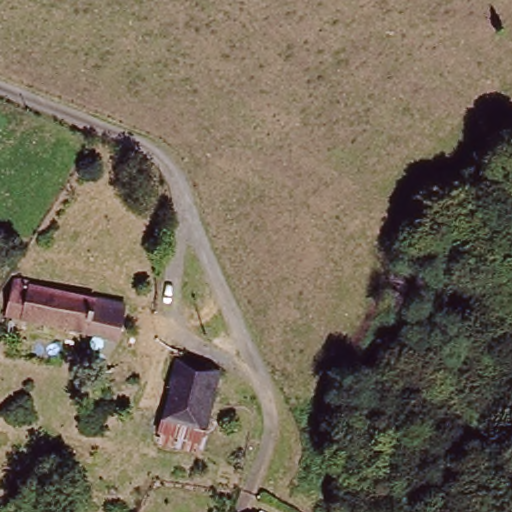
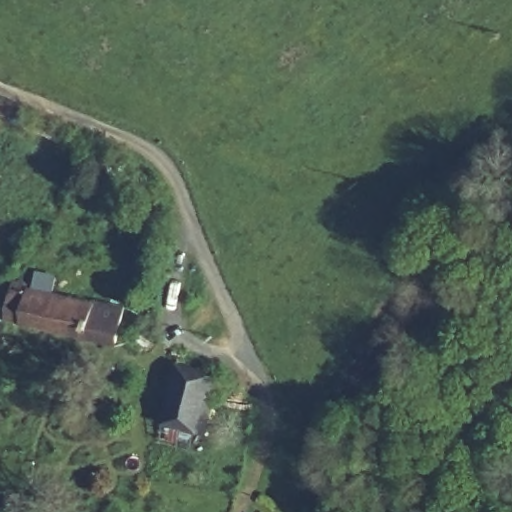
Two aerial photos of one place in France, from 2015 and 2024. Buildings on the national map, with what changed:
unchanged [(5,317),(12,277),(20,277),(35,286),(124,304),(116,340),(5,317)]
unchanged [(175,359),(220,373),(214,403),(227,405),(224,421),(211,420),(200,454),(155,444),(175,359)]

